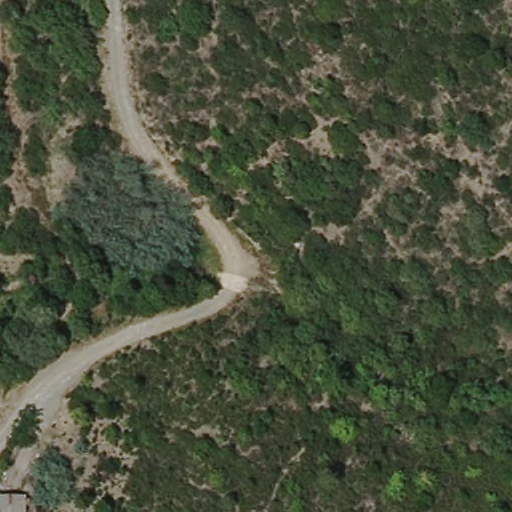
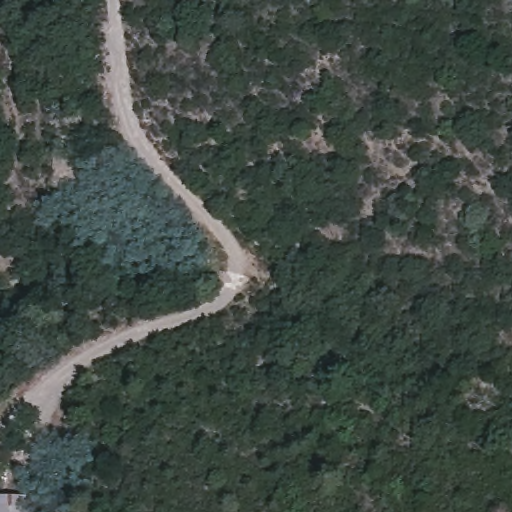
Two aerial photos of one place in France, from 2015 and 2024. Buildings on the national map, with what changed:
unchanged [(28,508),(28,512),(1,512),(1,507),(28,508)]

